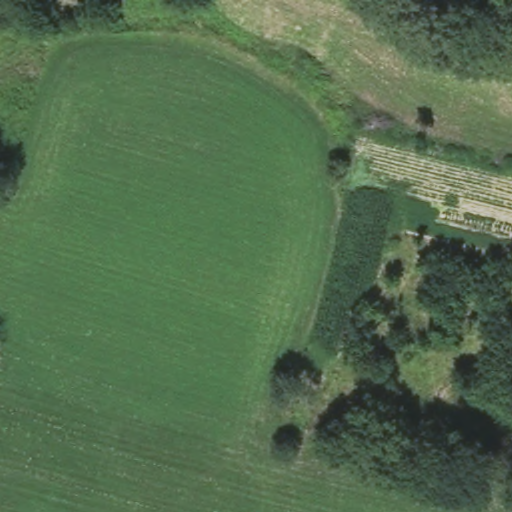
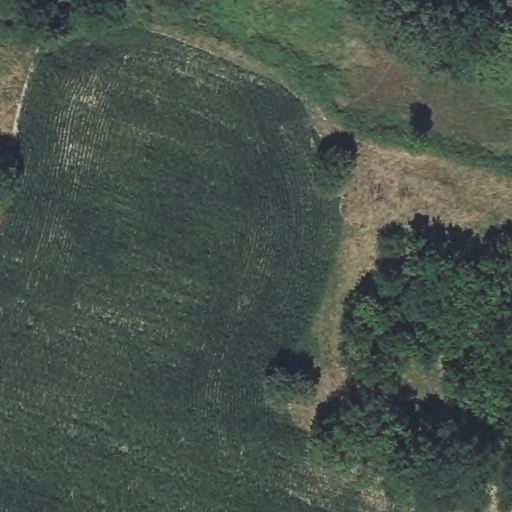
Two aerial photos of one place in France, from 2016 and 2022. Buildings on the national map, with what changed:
unchanged [(390,422),(385,443),(347,436),(353,415),(390,422)]

